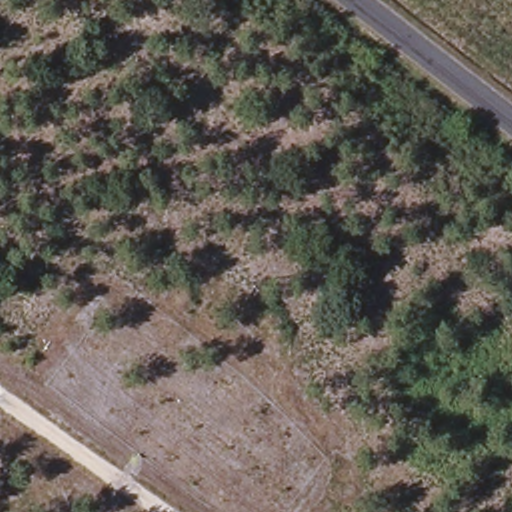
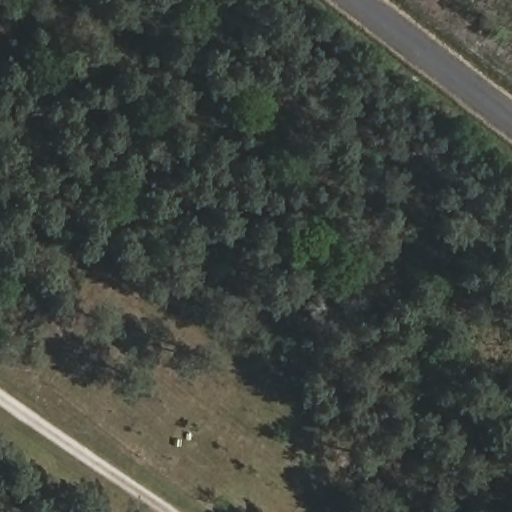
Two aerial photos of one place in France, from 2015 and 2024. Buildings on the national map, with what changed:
[]

